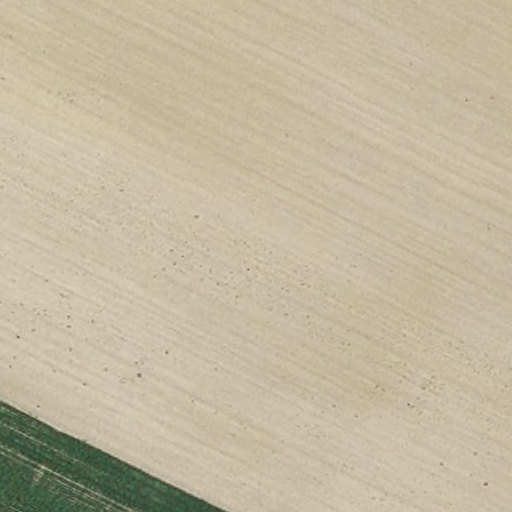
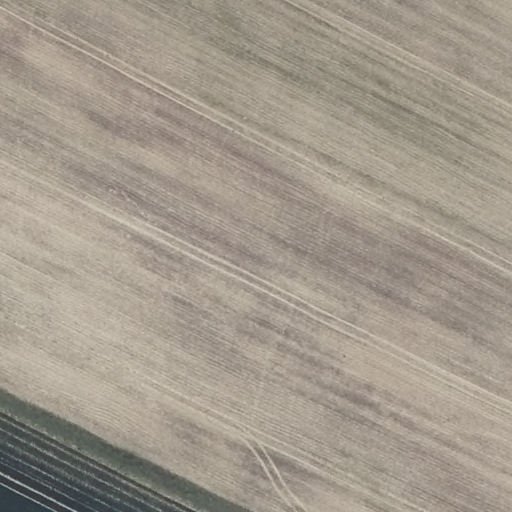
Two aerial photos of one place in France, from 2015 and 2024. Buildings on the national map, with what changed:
[]

